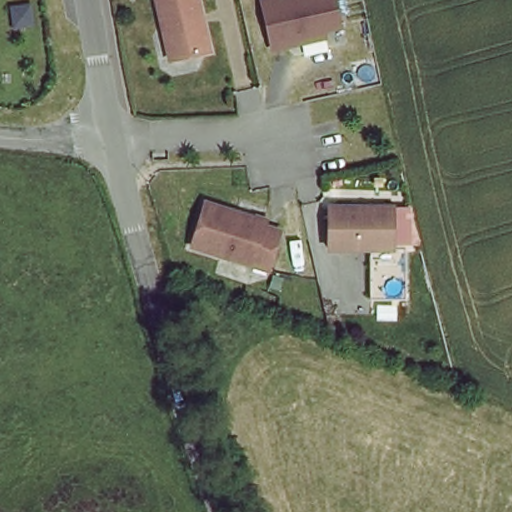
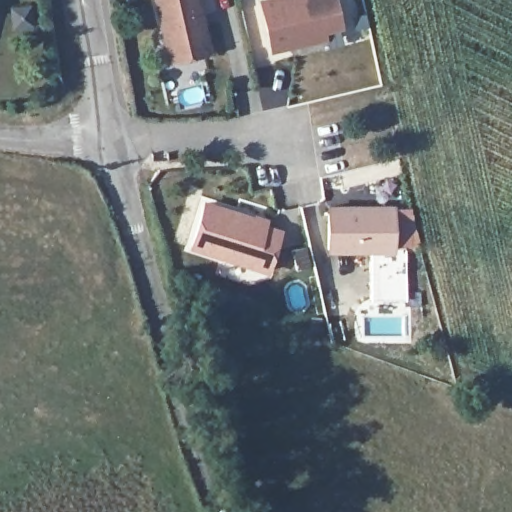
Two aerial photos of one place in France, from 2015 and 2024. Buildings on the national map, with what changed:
unchanged [(168,23),(163,24),(157,0),(197,0),(210,48),(176,56),(168,23)]
unchanged [(287,43),(270,47),(259,0),(334,0),(340,23),(323,27),(325,35),(287,43)]
unchanged [(401,198),(403,241),(338,243),(336,200),(401,198)]
unchanged [(261,217),(260,221),(276,226),(266,265),(189,243),(200,199),(261,217)]

